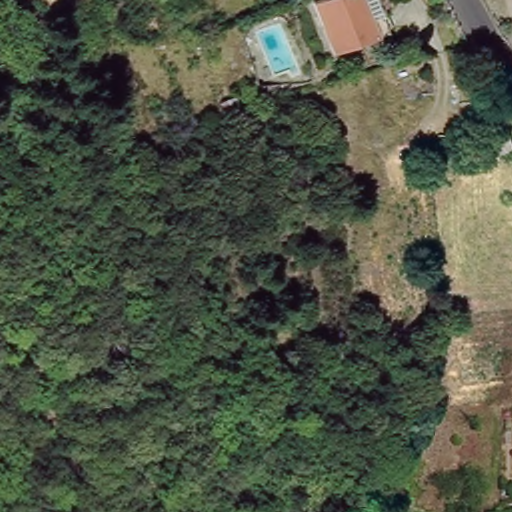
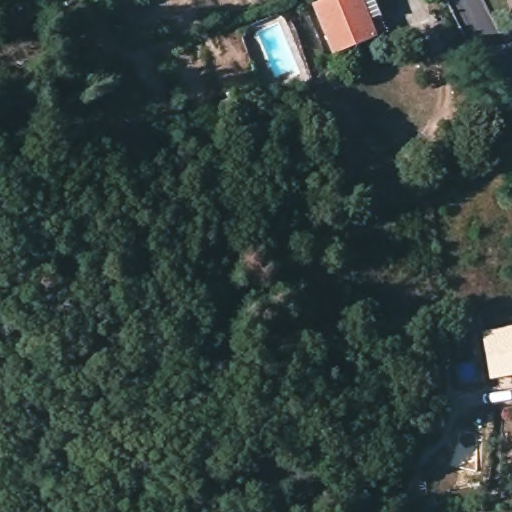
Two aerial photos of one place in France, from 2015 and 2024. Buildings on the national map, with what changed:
unchanged [(327,0),(367,0),(381,37),(332,59),(310,7),(327,0)]
unchanged [(227,82),(244,78),(249,92),(232,97),(227,82)]
new [(491,380),(485,334),(512,329),(512,376),(491,380)]

